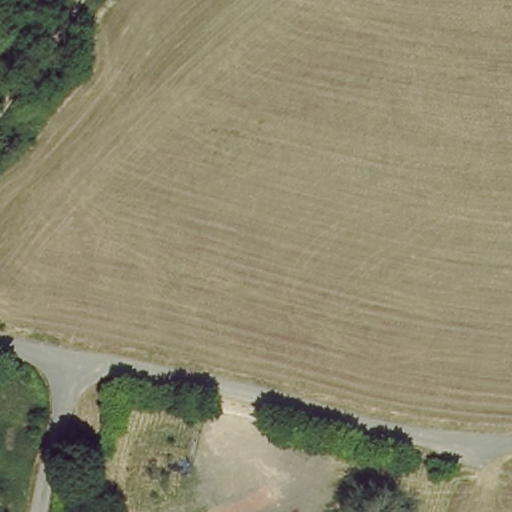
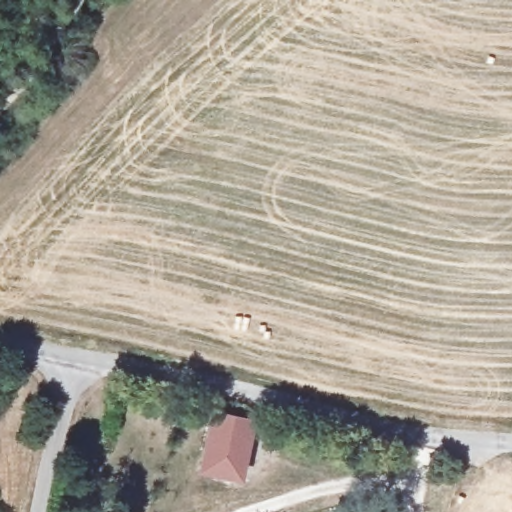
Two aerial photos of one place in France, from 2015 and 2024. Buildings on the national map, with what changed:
new [(198,472),(212,411),(256,420),(243,481),(198,472)]

